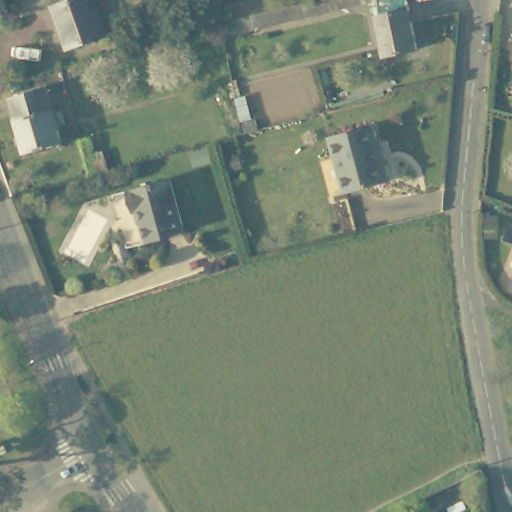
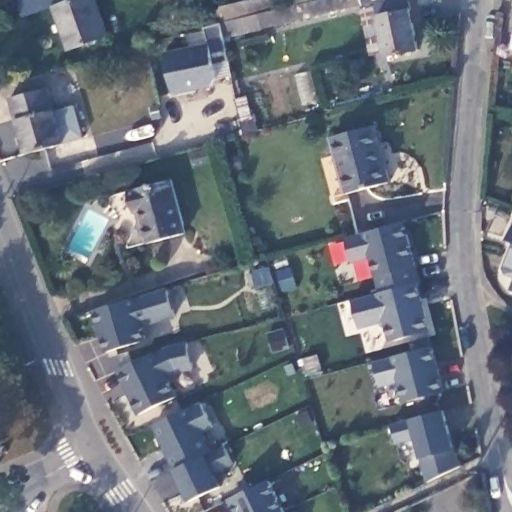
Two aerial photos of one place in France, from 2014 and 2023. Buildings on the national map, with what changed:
unchanged [(92,0),(103,34),(65,48),(50,5),(66,0),(92,0)]
unchanged [(225,18),(246,13),(279,4),(300,0),(372,0),(218,37),(214,21),(225,18)]
new [(246,13),(225,18),(222,19),(219,5),(244,0),(301,0),(279,4),(246,13)]
unchanged [(386,53),(377,0),(409,0),(417,47),(386,53)]
new [(218,37),(222,36),(225,61),(214,62),(216,79),(213,86),(172,93),(163,52),(188,46),(184,36),(205,31),(204,27),(212,25),(214,21),(218,37)]
unchanged [(7,93),(40,85),(55,142),(20,151),(7,93)]
unchanged [(74,105),(82,136),(55,142),(47,112),(74,105)]
unchanged [(374,140),(377,139),(387,179),(342,191),(327,135),(370,123),(374,140)]
unchanged [(168,173),(185,225),(149,238),(138,207),(134,208),(126,188),(168,173)]
new [(388,341),(384,321),(357,328),(349,299),(378,291),(370,257),(350,262),(344,238),(403,222),(419,281),(416,282),(428,331),(388,341)]
unchanged [(512,264),(512,290),(502,286),(512,264)]
new [(174,316),(140,327),(144,340),(104,352),(91,311),(165,288),(174,316)]
new [(193,370),(177,373),(167,377),(177,396),(137,414),(115,370),(168,344),(184,342),(193,370)]
new [(431,347),(444,391),(403,401),(398,381),(378,386),(374,362),(431,347)]
new [(212,428),(202,434),(210,450),(223,446),(233,465),(214,474),(219,486),(188,502),(173,470),(170,469),(151,425),(199,402),(212,428)]
new [(389,423),(408,418),(443,409),(453,450),(460,464),(425,482),(414,438),(395,443),(389,423)]
new [(283,512),(233,512),(227,500),(268,480),(283,512)]

